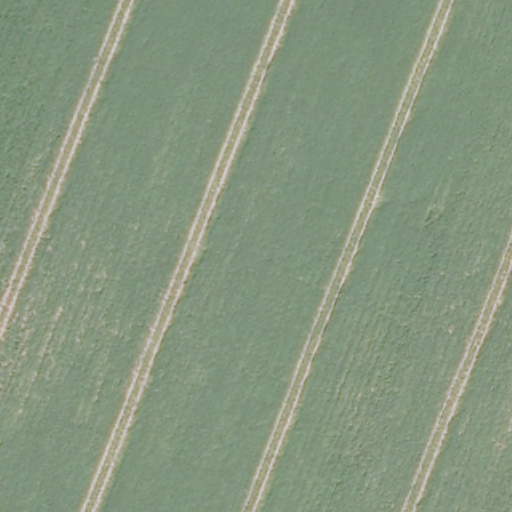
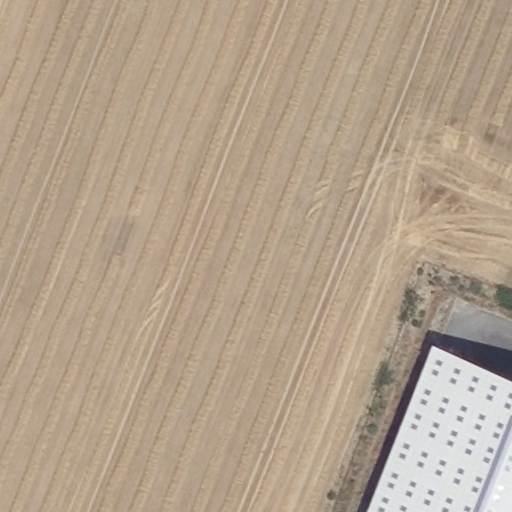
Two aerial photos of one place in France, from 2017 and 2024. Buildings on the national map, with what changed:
new [(512,512),(369,512),(436,341),(512,371),(512,512)]

